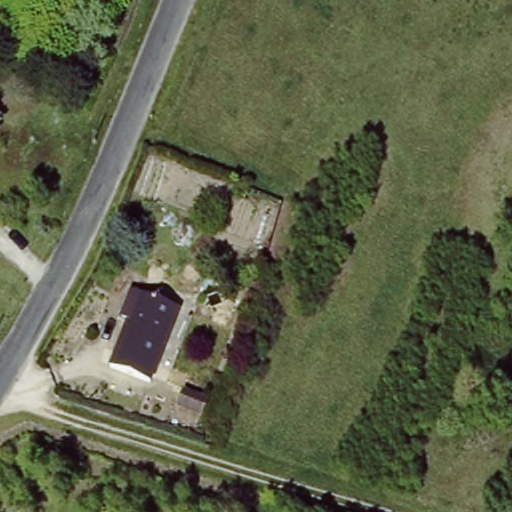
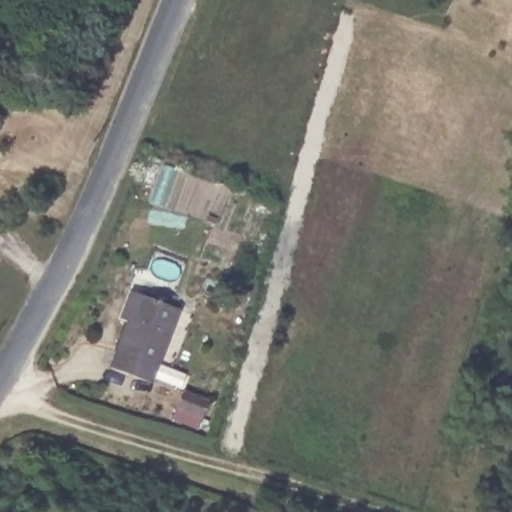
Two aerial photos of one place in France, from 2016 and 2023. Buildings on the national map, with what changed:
unchanged [(152,383),(113,368),(131,322),(124,319),(135,290),(142,293),(181,310),(152,383)]
unchanged [(210,399),(203,416),(178,405),(184,389),(210,399)]

